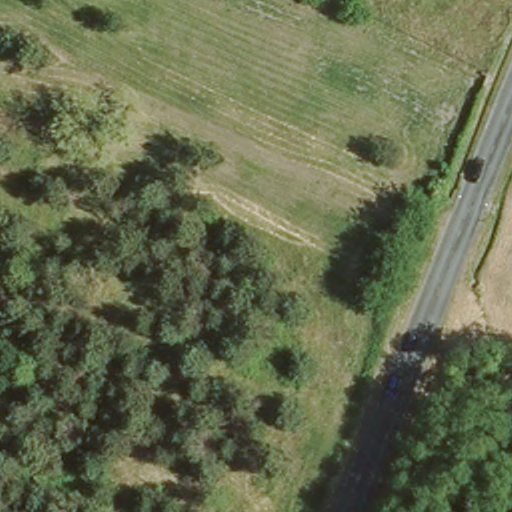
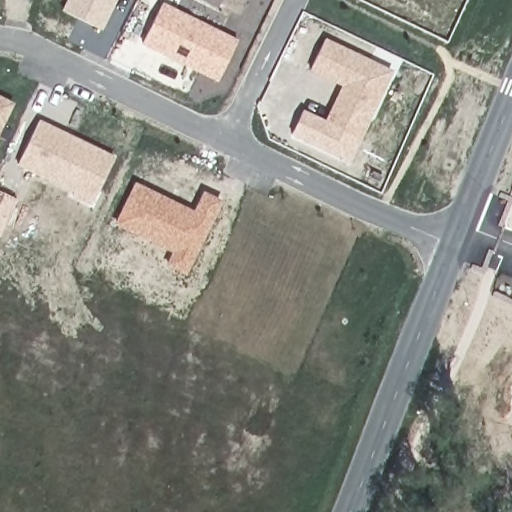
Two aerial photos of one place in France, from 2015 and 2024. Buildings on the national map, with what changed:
new [(61,10),(66,0),(117,0),(102,30),(61,10)]
new [(217,83),(141,45),(162,2),(238,40),(217,83)]
new [(308,71),(325,39),(392,71),(348,166),(290,139),(302,111),(325,121),(340,86),(308,71)]
new [(15,103),(0,133),(0,96),(15,103)]
new [(115,156),(91,205),(71,196),(74,192),(17,164),(40,120),(115,156)]
new [(192,211),(202,191),(221,202),(185,275),(165,263),(171,253),(115,224),(135,182),(192,211)]
new [(17,200),(0,235),(0,192),(17,200)]

